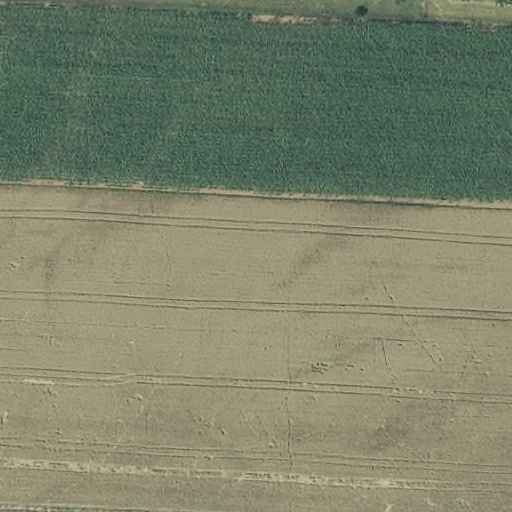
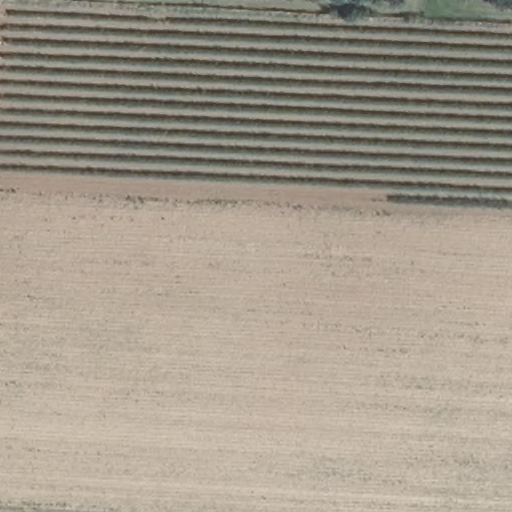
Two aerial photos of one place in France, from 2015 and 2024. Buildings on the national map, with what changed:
[]

